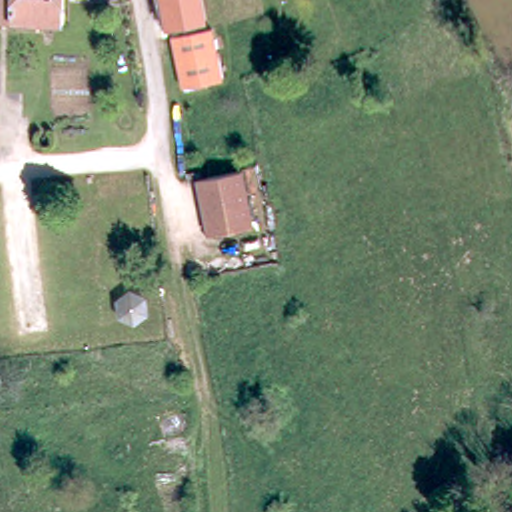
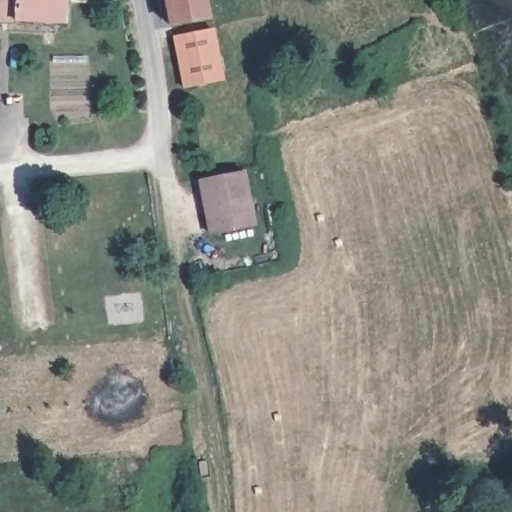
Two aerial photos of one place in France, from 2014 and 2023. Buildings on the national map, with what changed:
unchanged [(69,19),(0,14),(0,0),(69,0),(69,19)]
unchanged [(174,0),(209,0),(211,12),(177,19),(174,0)]
unchanged [(224,76),(184,84),(175,36),(215,29),(224,76)]
unchanged [(254,226),(211,233),(202,176),(245,169),(254,226)]

